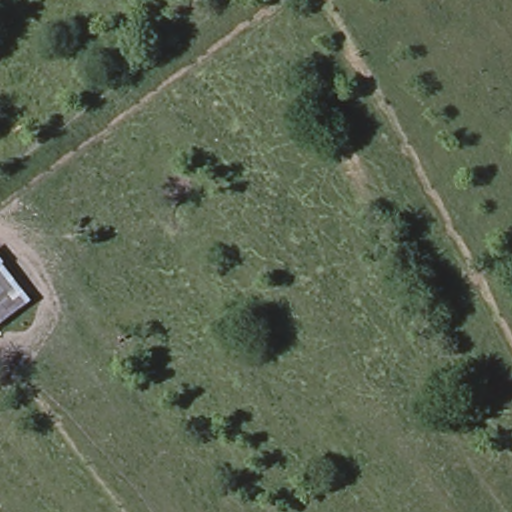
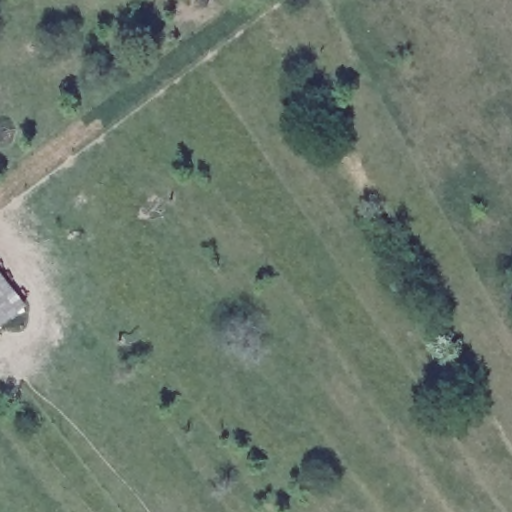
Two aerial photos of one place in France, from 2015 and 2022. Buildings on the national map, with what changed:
unchanged [(0,328),(0,272),(30,306),(0,328)]

